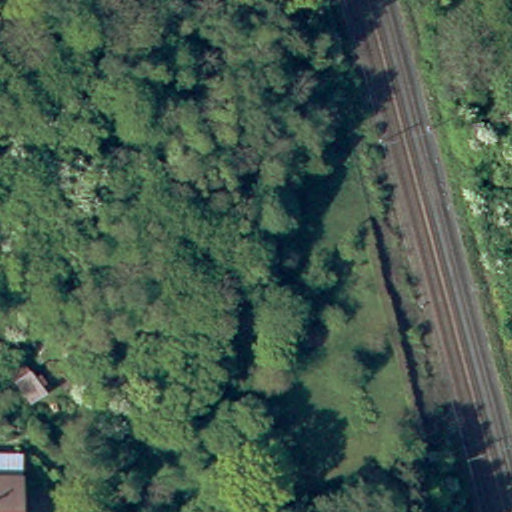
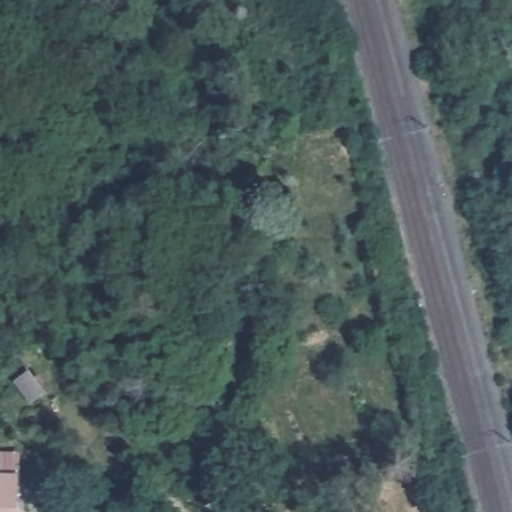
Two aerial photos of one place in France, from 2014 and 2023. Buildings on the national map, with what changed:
unchanged [(12,512),(0,512),(0,451),(12,450),(12,512)]

